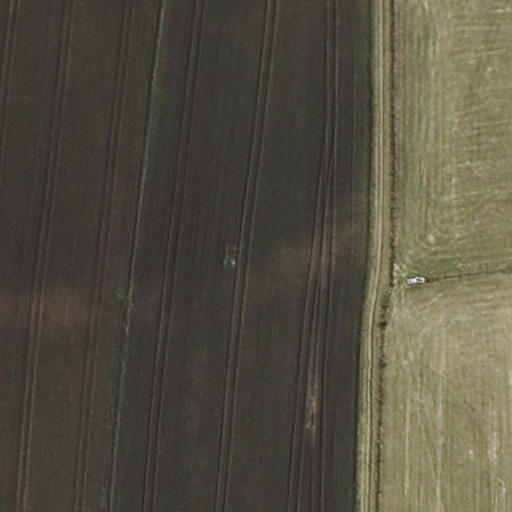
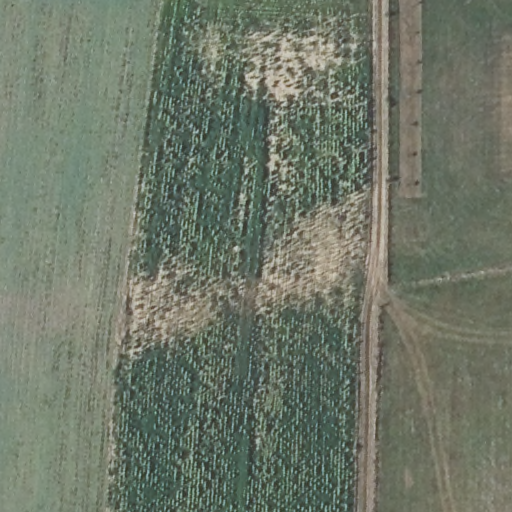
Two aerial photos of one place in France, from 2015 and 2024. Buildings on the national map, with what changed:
[]

